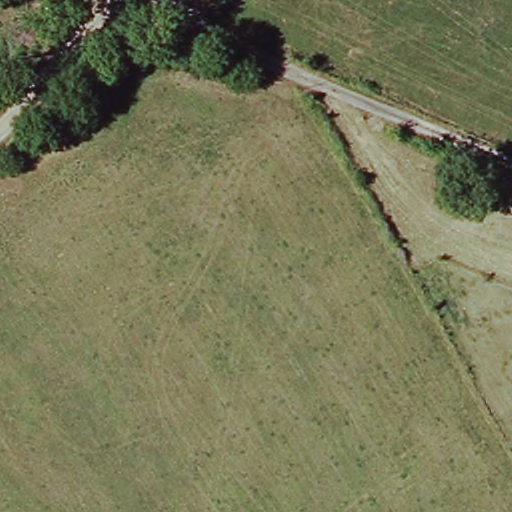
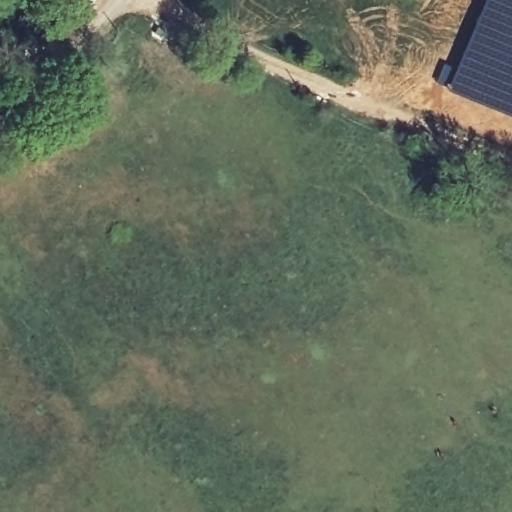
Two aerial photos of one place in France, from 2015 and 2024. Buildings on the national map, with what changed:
new [(454,68),(484,0),(512,0),(512,118),(445,89),(447,85),(437,80),(444,64),(454,68)]

